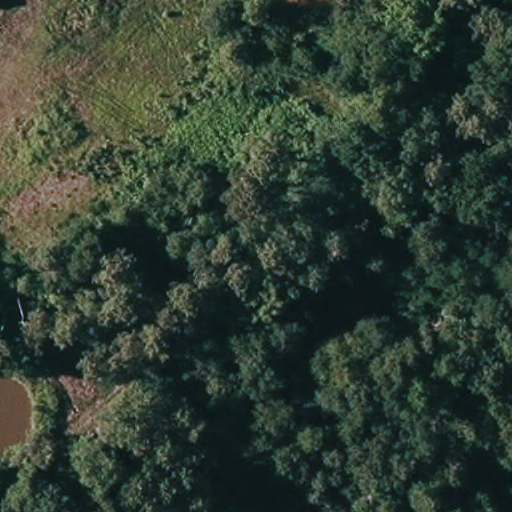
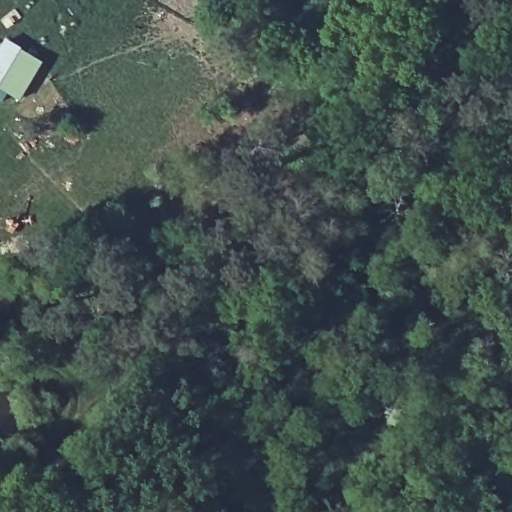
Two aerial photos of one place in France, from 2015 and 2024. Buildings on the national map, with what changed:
new [(5,39),(43,64),(20,102),(0,91),(0,47),(5,39)]

